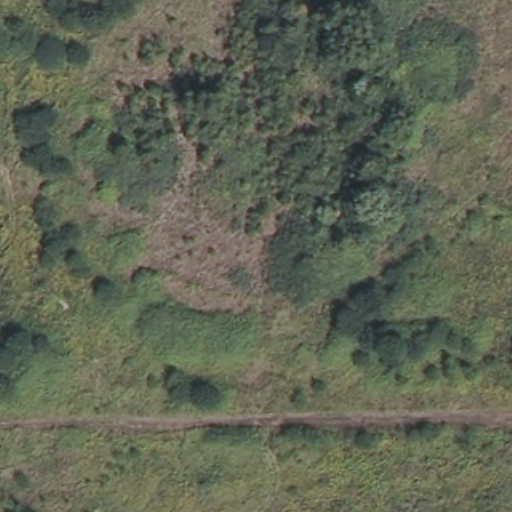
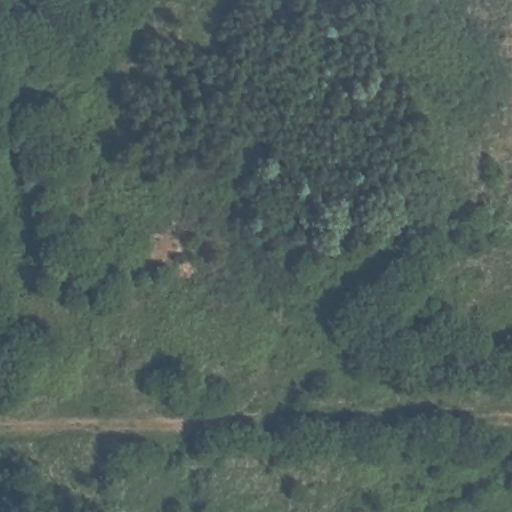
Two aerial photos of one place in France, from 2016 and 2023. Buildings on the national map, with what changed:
[]

